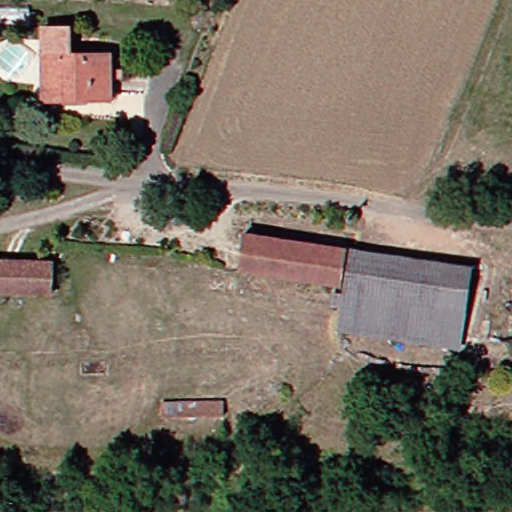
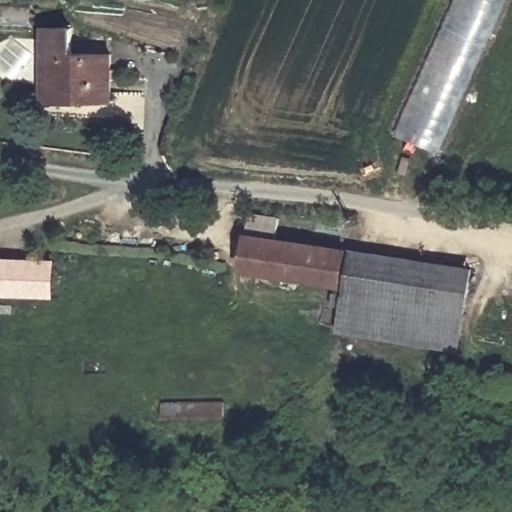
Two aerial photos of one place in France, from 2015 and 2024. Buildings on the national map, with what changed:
new [(393,131),(451,0),(505,0),(438,150),(393,131)]
unchanged [(39,91),(39,27),(66,27),(66,30),(67,55),(106,55),(106,100),(65,101),(38,100),(39,91)]
unchanged [(335,285),(237,272),(242,239),(340,253),(335,285)]
unchanged [(349,254),(465,271),(460,315),(342,297),(349,254)]
unchanged [(54,263),(54,292),(0,292),(0,260),(54,263)]
unchanged [(460,315),(455,350),(338,333),(342,297),(460,315)]
unchanged [(227,399),(228,415),(163,419),(163,404),(227,399)]

